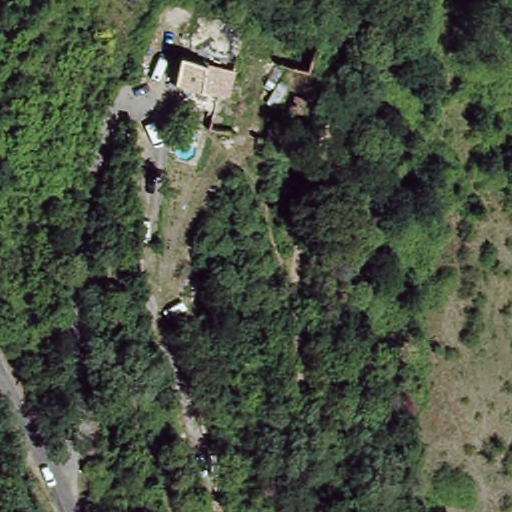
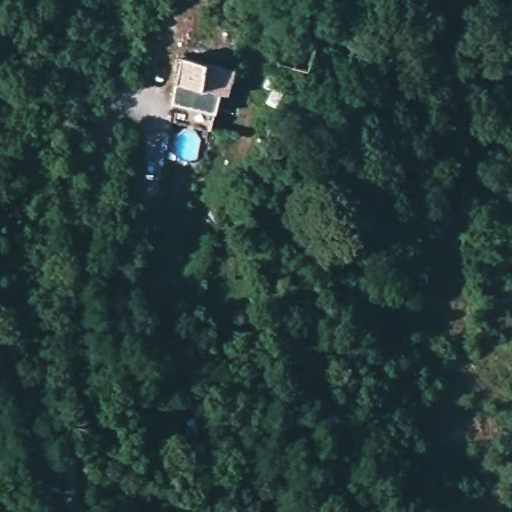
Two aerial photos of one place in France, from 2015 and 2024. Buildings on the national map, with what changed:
unchanged [(229,110),(219,109),(203,103),(177,95),(183,71),(206,77),(236,84),(229,110)]
unchanged [(284,94),(296,95),(299,110),(282,109),(284,94)]
unchanged [(253,140),(257,122),(274,127),(275,148),(253,140)]

